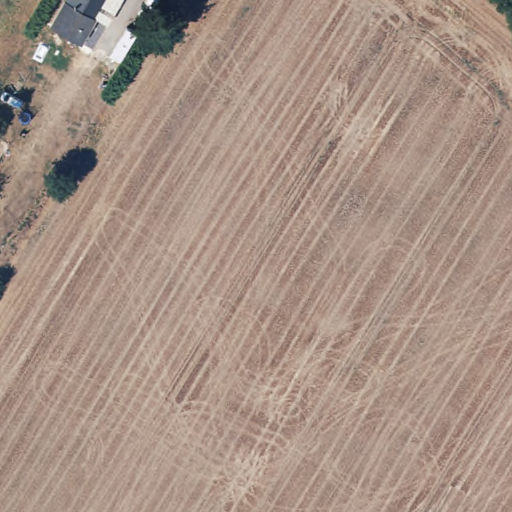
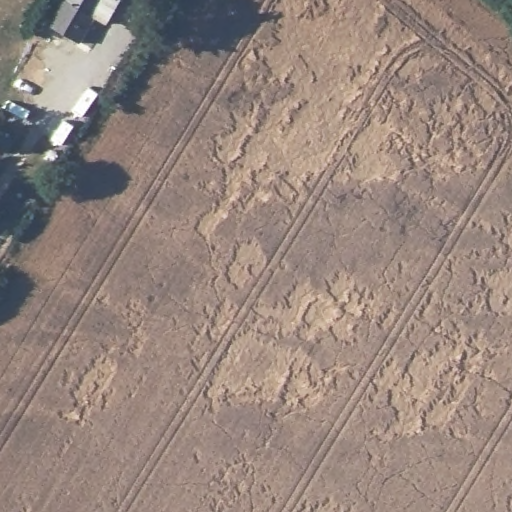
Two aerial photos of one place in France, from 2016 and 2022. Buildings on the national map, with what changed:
unchanged [(61,0),(85,0),(81,7),(95,17),(78,44),(46,24),(61,0)]

